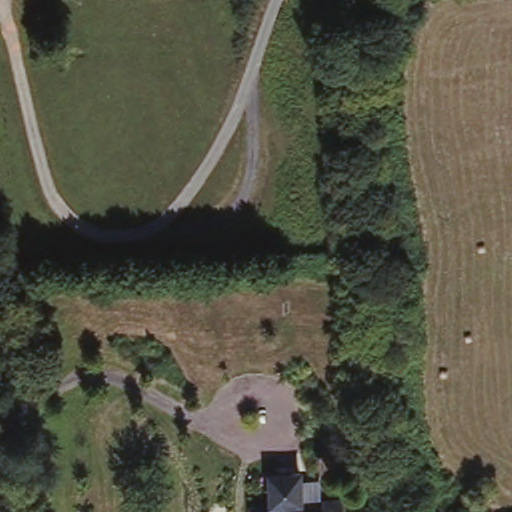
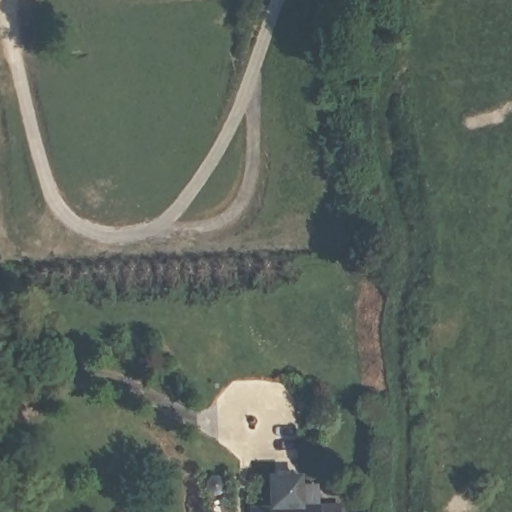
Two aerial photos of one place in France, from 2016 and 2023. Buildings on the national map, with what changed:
unchanged [(272,471),(302,471),(301,484),(321,485),(322,502),(342,501),(342,512),(252,512),(252,501),(272,501),(272,471)]

